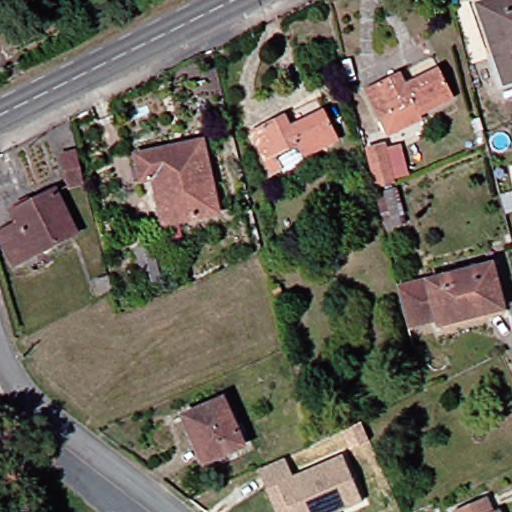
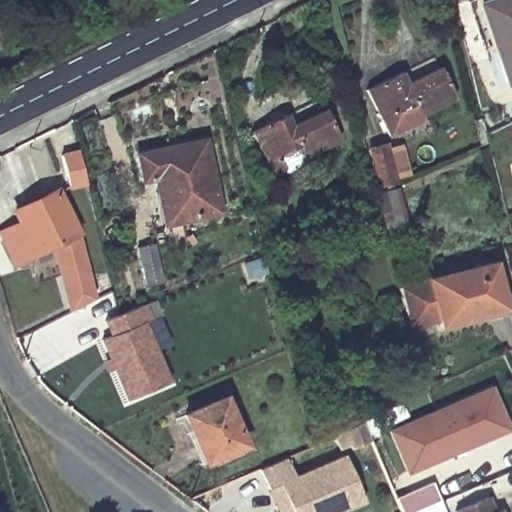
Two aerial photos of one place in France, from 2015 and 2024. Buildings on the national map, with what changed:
unchanged [(495,44),(481,4),(485,2),(493,0),(512,0),(512,83),(508,85),(495,44)]
unchanged [(386,120),(372,90),(406,73),(412,85),(444,69),(460,101),(427,117),(428,120),(394,136),(393,134),(390,129),(386,120)]
unchanged [(286,172),(284,168),(273,173),(267,161),(252,132),(287,115),(293,126),(326,110),(341,141),(305,158),(307,162),(286,172)]
unchanged [(167,225),(155,177),(143,180),(137,156),(175,147),(203,141),(207,159),(220,214),(167,225)]
unchanged [(378,186),(369,150),(386,145),(395,181),(378,186)]
unchanged [(69,182),(61,153),(78,149),(86,179),(69,182)]
unchanged [(378,194),(395,190),(403,220),(386,224),(378,194)]
unchanged [(16,263),(2,234),(21,224),(15,212),(57,192),(77,233),(16,263)]
unchanged [(146,286),(137,247),(153,244),(162,282),(146,286)]
unchanged [(494,265),(506,310),(440,326),(439,320),(409,327),(400,288),(494,265)]
unchanged [(101,296),(97,280),(111,276),(114,289),(101,296)]
new [(112,335),(106,320),(145,304),(152,320),(145,322),(171,382),(129,400),(103,339),(112,335)]
new [(492,382),(510,423),(428,459),(410,466),(392,426),(411,418),(492,382)]
unchanged [(247,446),(206,464),(198,445),(185,415),(195,410),(225,397),(247,446)]
unchanged [(271,488),(262,470),(289,457),(297,475),(347,453),(367,500),(339,512),(282,512),(271,488)]
new [(433,480),(441,498),(407,512),(404,512),(397,495),(433,480)]
unchanged [(490,499),(496,512),(459,512),(490,499)]
unchanged [(503,512),(499,512),(502,510),(503,512)]

